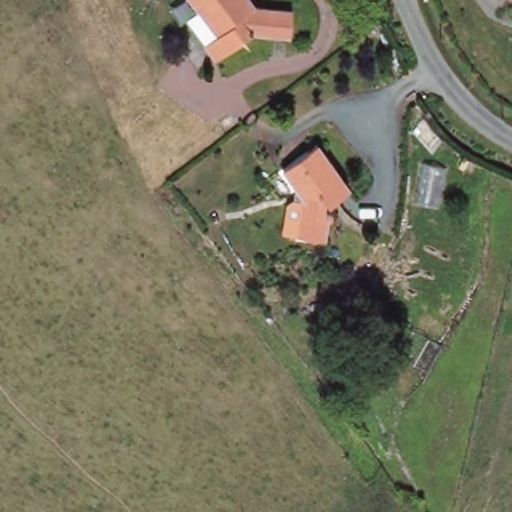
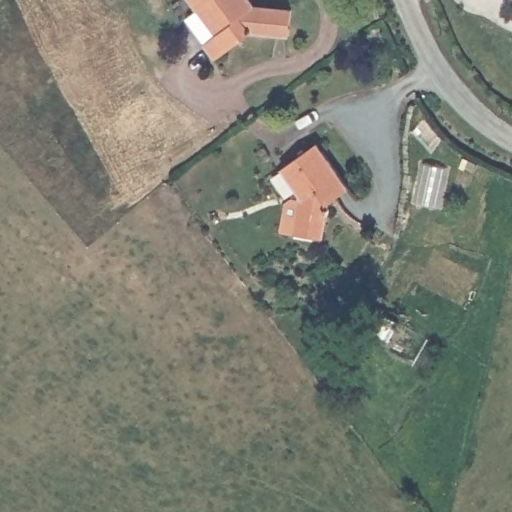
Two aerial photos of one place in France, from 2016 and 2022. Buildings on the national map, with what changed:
unchanged [(255,6),(292,11),(289,36),(252,31),(218,59),(206,45),(185,19),(198,8),(192,0),(251,0),(255,6)]
unchanged [(317,140),(351,183),(333,197),(328,237),(301,234),(306,199),(283,167),(317,140)]

